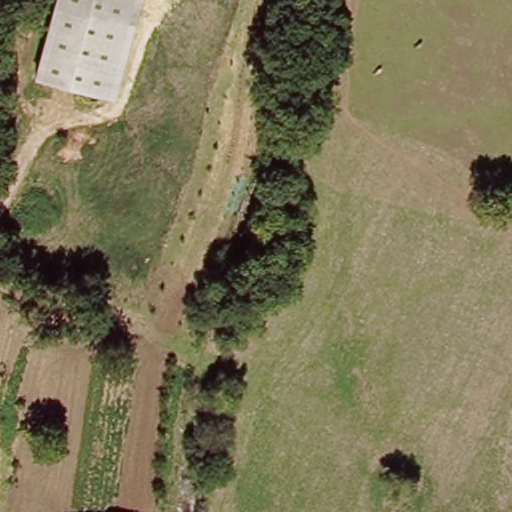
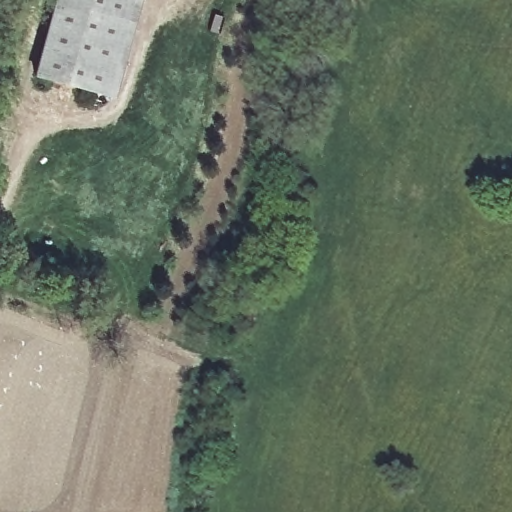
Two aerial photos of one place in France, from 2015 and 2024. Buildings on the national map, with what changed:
unchanged [(54,0),(141,0),(113,99),(34,79),(54,0)]

